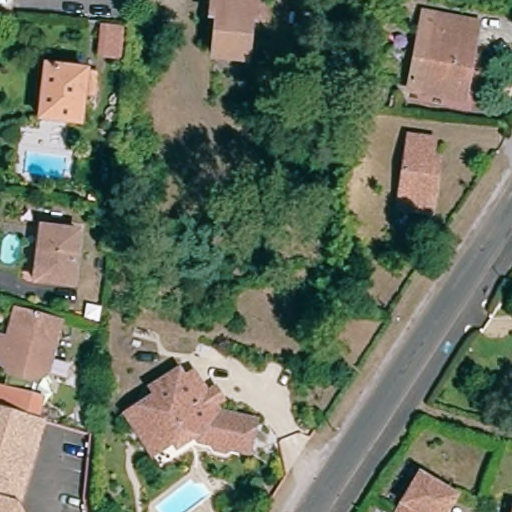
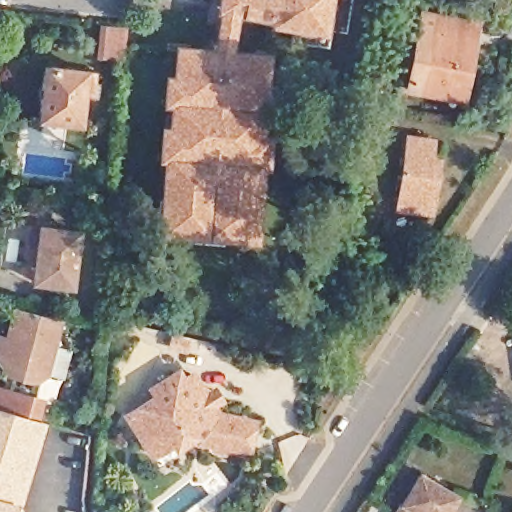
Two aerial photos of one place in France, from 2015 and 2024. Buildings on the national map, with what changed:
new [(155,231),(162,162),(157,160),(160,125),(169,126),(171,105),(162,104),(164,74),(171,75),(174,42),(213,45),(218,11),(213,11),(215,0),(331,0),(325,44),(292,40),(293,29),(268,25),(268,20),(237,17),(232,47),(271,50),(266,107),(273,107),(268,170),(262,170),(257,244),(155,231)]
demolished [(217,25),(210,24),(212,0),(248,0),(247,0),(256,1),(254,29),(247,27),(244,66),(215,63),(217,25)]
unchanged [(12,37),(0,35),(0,17),(14,19),(12,37)]
unchanged [(476,30),(461,104),(410,95),(413,76),(421,37),(425,20),(476,30)]
new [(105,31),(125,34),(122,58),(102,56),(105,31)]
unchanged [(47,69),(85,74),(79,125),(40,120),(47,69)]
demolished [(103,74),(122,76),(116,130),(97,127),(103,74)]
unchanged [(433,190),(431,207),(398,202),(409,134),(433,137),(431,154),(438,155),(433,190)]
unchanged [(41,234),(78,239),(72,291),(35,286),(41,234)]
unchanged [(31,380),(29,389),(34,400),(29,418),(27,418),(0,410),(0,380),(2,373),(0,370),(0,334),(4,332),(10,309),(57,321),(42,374),(31,380)]
unchanged [(344,345),(352,348),(348,356),(341,353),(344,345)]
unchanged [(119,421),(131,412),(147,402),(142,395),(171,376),(176,384),(185,379),(197,399),(206,393),(213,404),(205,410),(211,419),(247,427),(240,459),(222,455),(221,458),(203,454),(204,450),(190,447),(183,436),(157,453),(145,461),(119,421)]
unchanged [(29,418),(37,421),(31,445),(37,446),(18,508),(20,512),(0,512),(0,410),(27,418),(29,418)]
unchanged [(440,512),(391,512),(417,470),(452,491),(440,512)]
unchanged [(507,504),(512,505),(512,512),(506,512),(507,510),(507,504)]

